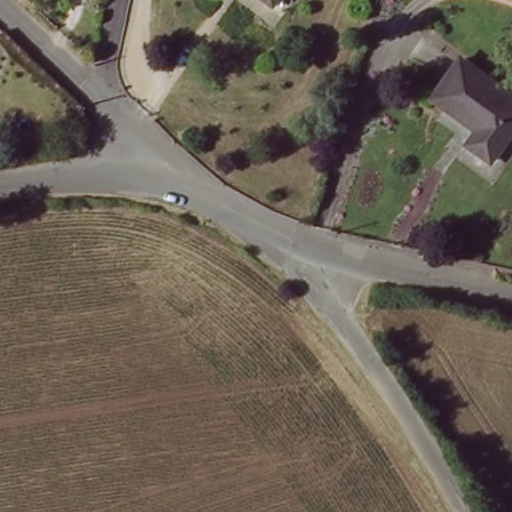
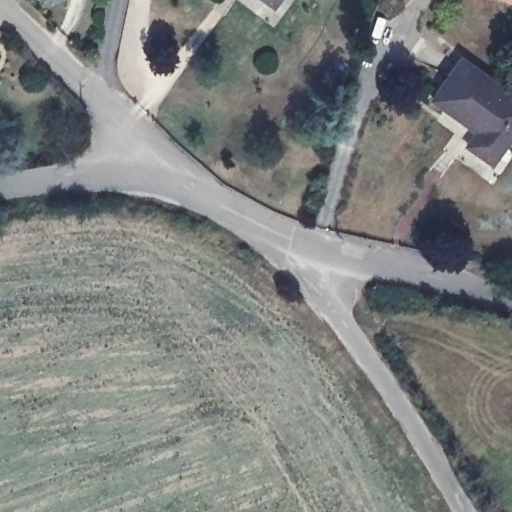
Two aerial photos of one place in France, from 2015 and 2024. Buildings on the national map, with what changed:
unchanged [(512,140),(498,159),(477,144),(487,129),(440,96),(467,58),(512,90),(512,140)]

